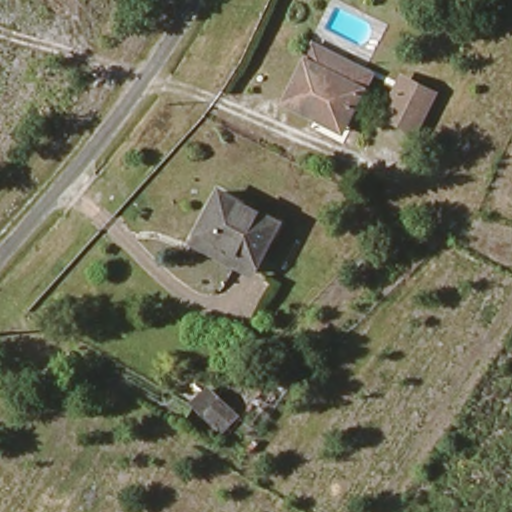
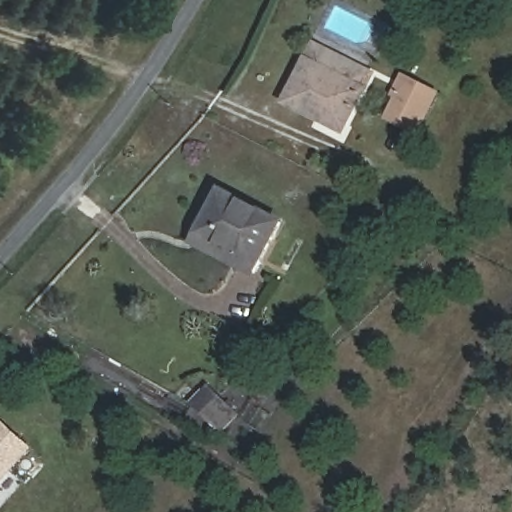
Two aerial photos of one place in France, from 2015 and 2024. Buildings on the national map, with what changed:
unchanged [(337,130),(283,101),(307,63),(315,50),(335,61),(368,77),(337,130)]
unchanged [(409,137),(403,132),(384,118),(407,81),(425,92),(433,96),(409,137)]
unchanged [(195,244),(200,235),(222,196),(281,227),(257,267),(252,277),(195,244)]
new [(1,426),(26,449),(0,477),(0,426),(1,426)]

